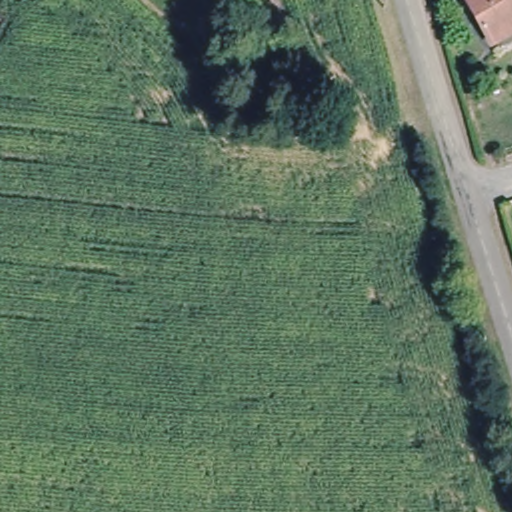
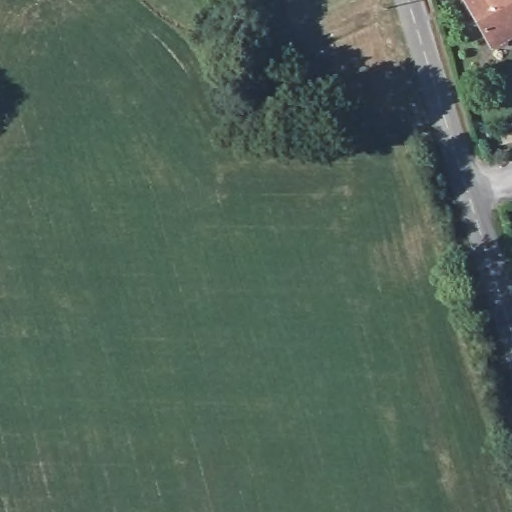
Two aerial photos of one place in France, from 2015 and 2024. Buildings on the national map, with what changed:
unchanged [(512,42),(499,50),(470,0),(512,0),(512,42)]

